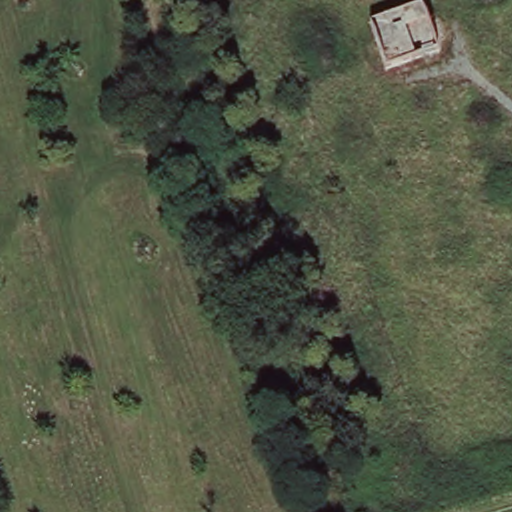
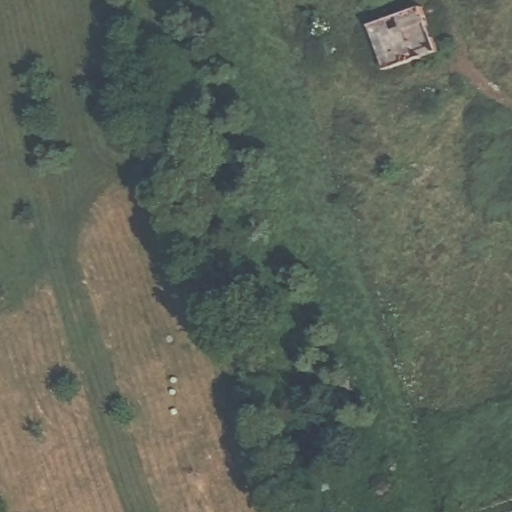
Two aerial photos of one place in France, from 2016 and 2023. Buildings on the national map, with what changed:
unchanged [(386,68),(371,23),(421,6),(438,50),(386,68)]

